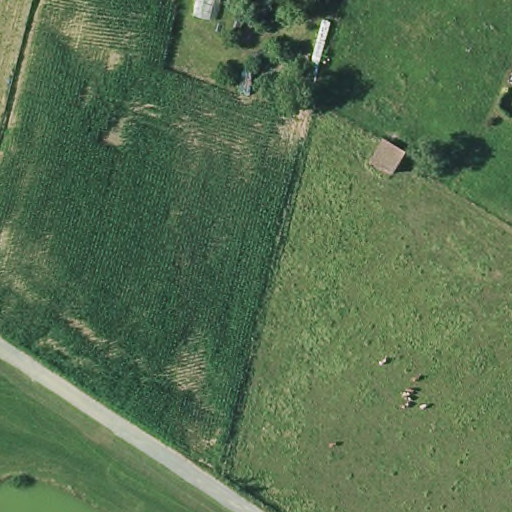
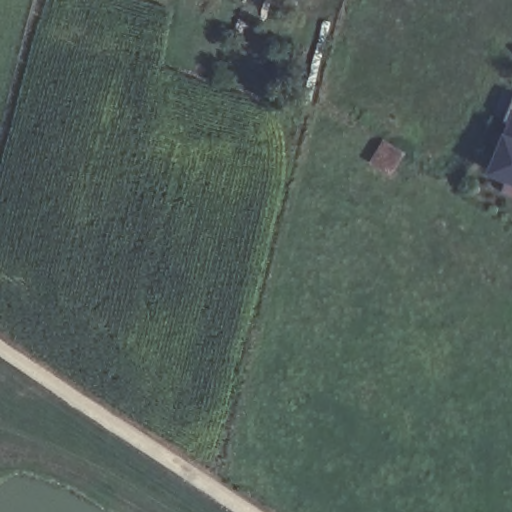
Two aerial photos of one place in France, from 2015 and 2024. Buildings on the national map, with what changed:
new [(483,173),(512,100),(512,183),(483,173)]

